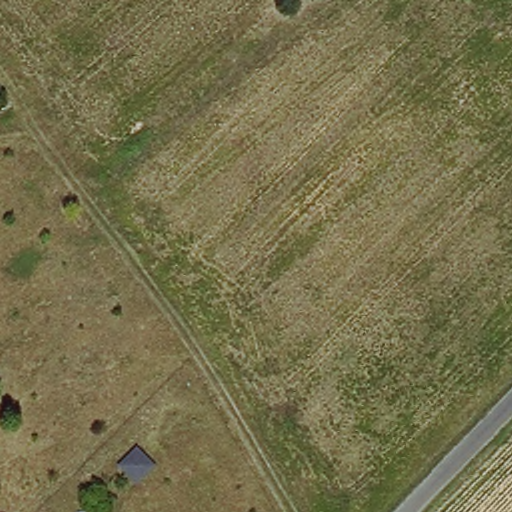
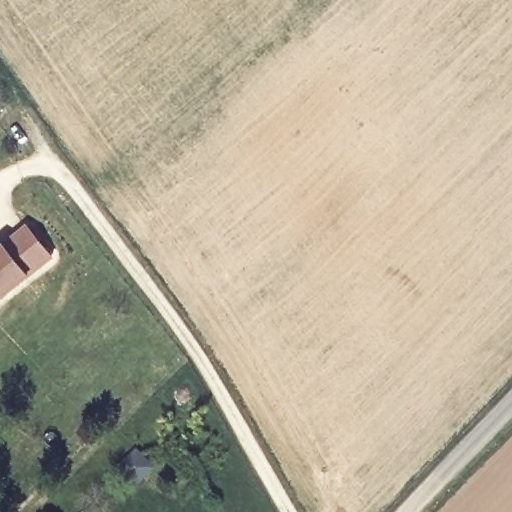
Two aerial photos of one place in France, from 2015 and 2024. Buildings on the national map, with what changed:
new [(26,223),(52,257),(0,300),(0,244),(26,223)]
new [(140,449),(154,468),(137,485),(121,465),(140,449)]

